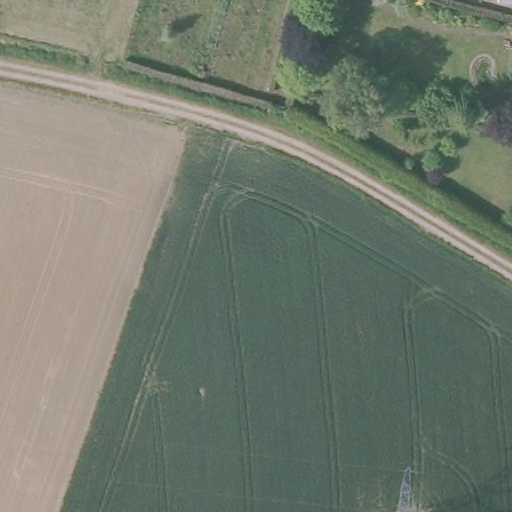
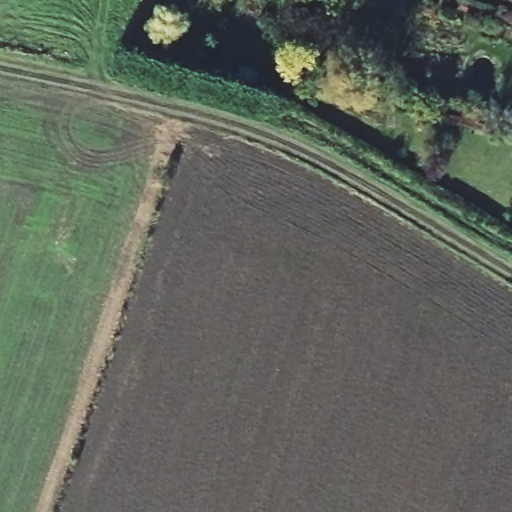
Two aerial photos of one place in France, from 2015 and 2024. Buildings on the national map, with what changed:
unchanged [(503,0),(512,0),(512,4),(503,2),(503,0)]

